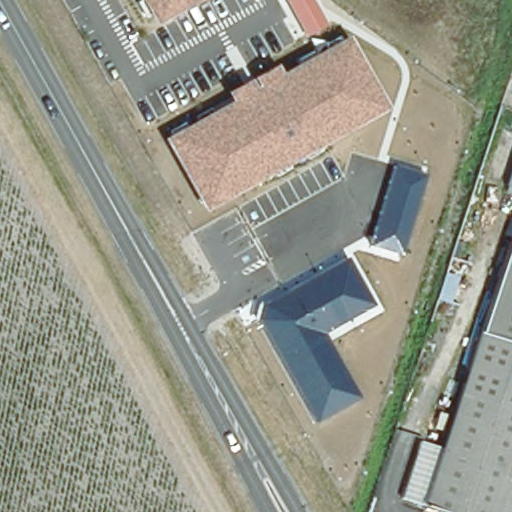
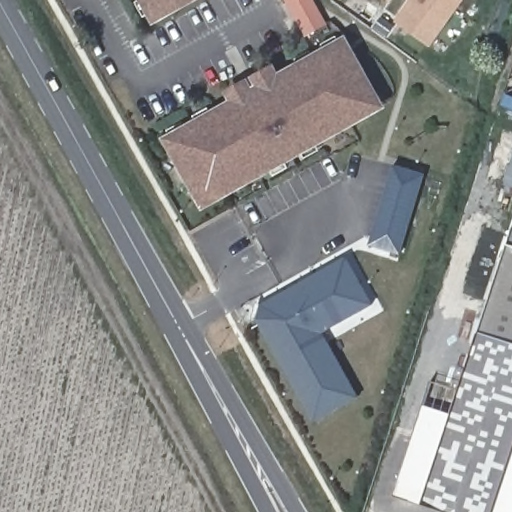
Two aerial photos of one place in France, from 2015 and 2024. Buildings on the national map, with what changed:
unchanged [(139,0),(201,0),(154,27),(139,0)]
unchanged [(285,0),(312,0),(326,25),(305,36),(285,0)]
new [(390,0),(393,0),(392,1),(390,0)]
new [(464,0),(430,46),(398,24),(415,0),(464,0)]
unchanged [(204,210),(162,140),(228,101),(223,94),(274,65),(279,73),(347,35),(386,109),(204,210)]
unchanged [(400,255),(367,245),(392,165),(424,174),(400,255)]
unchanged [(478,318),(512,214),(512,342),(474,330),(478,318)]
unchanged [(323,332),(359,397),(310,425),(255,323),(261,302),(347,258),(373,305),(323,332)]
unchanged [(417,501),(474,330),(512,342),(512,498),(510,505),(512,505),(512,512),(451,512),(417,501)]

